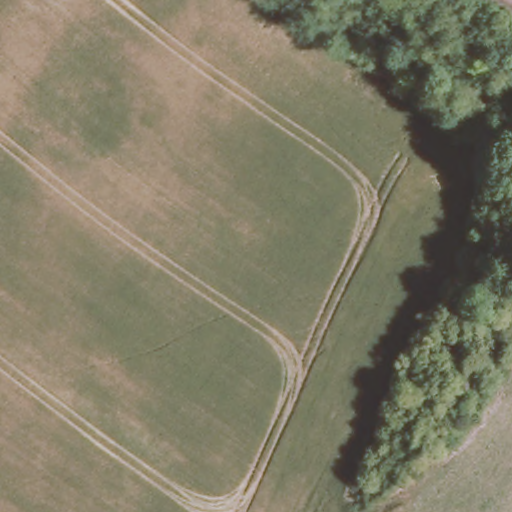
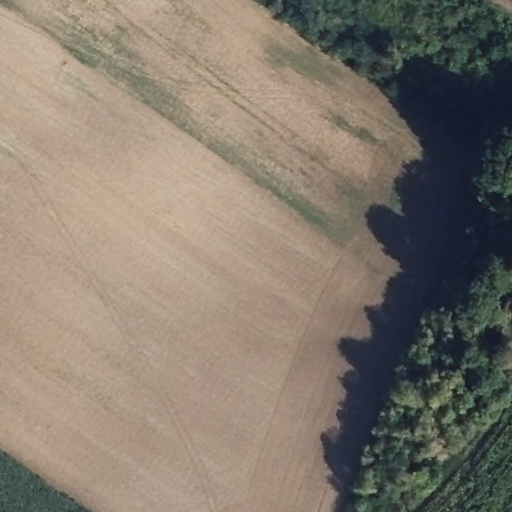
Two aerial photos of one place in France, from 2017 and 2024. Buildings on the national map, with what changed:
[]

